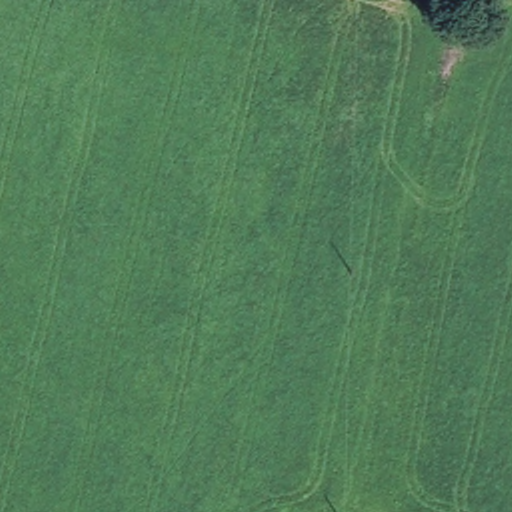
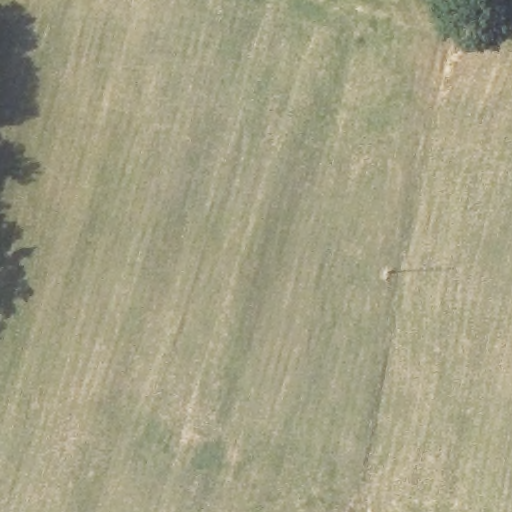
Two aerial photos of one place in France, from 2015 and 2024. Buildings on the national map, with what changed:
[]

